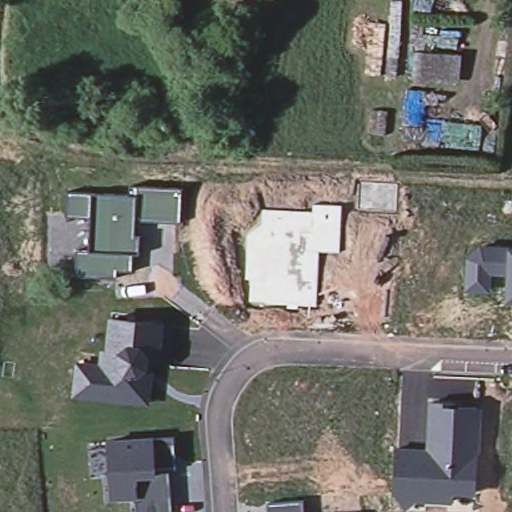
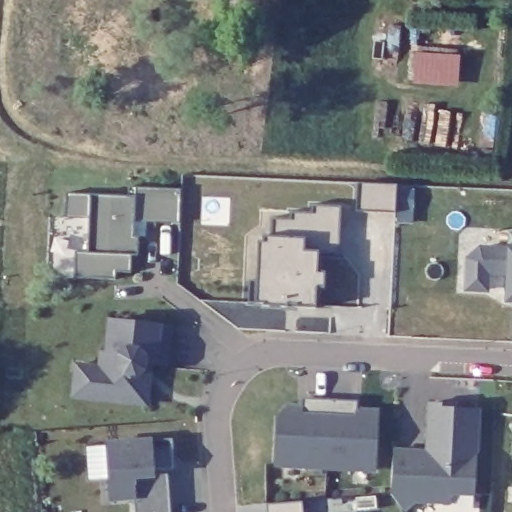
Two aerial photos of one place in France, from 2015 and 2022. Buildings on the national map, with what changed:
new [(460,54),(458,85),(413,82),(415,52),(460,54)]
new [(356,183),(395,185),(394,213),(355,211),(356,183)]
unchanged [(135,193),(135,186),(182,187),(181,223),(135,221),(135,237),(141,237),(140,253),(132,253),(132,270),(115,269),(115,277),(75,275),(75,250),(90,250),(92,217),(66,215),(67,191),(135,193)]
unchanged [(340,252),(319,251),(316,304),(249,301),(250,279),(246,279),(247,233),(263,208),(314,210),(314,205),(341,205),(340,252)]
unchanged [(512,301),(507,301),(508,275),(492,275),(492,292),(465,292),(465,256),(482,243),(512,244),(512,301)]
unchanged [(165,323),(162,354),(155,353),(149,404),(70,397),(74,360),(99,363),(100,348),(104,348),(108,316),(165,323)]
new [(286,407),(300,407),(301,397),(311,398),(328,399),(325,467),(275,465),(277,417),(286,407)]
new [(347,400),(357,400),(357,410),(377,411),(375,470),(325,467),(328,399),(347,400)]
unchanged [(454,400),(454,405),(482,407),(477,496),(455,496),(454,504),(417,501),(407,509),(392,492),(397,444),(427,446),(430,400),(454,400)]
unchanged [(178,470),(170,471),(173,512),(135,512),(134,498),(109,499),(104,438),(175,434),(178,470)]
unchanged [(304,498),(304,512),(266,512),(266,502),(304,498)]

